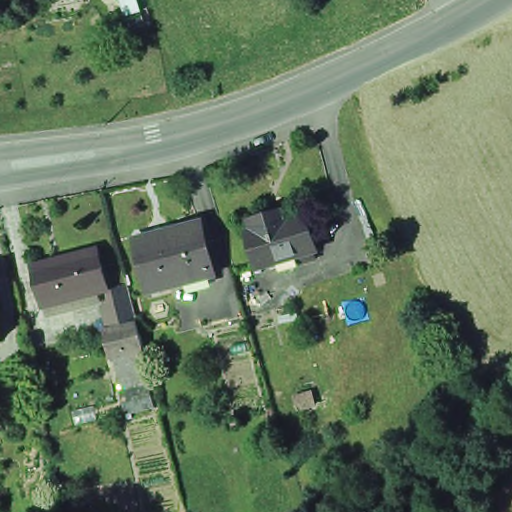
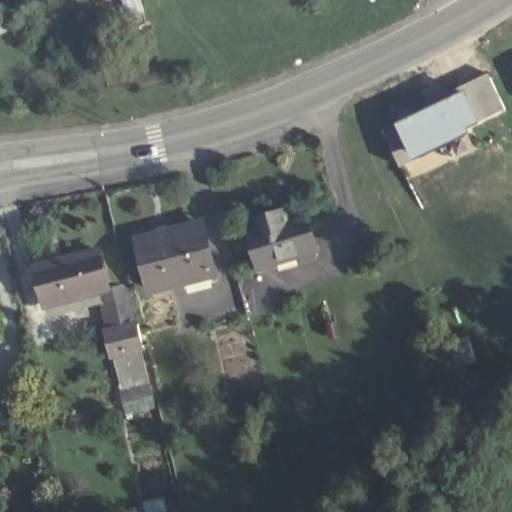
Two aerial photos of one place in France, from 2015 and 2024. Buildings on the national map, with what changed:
new [(506,110),(467,130),(469,135),(400,169),(383,131),(463,93),(460,88),(489,73),(506,110)]
unchanged [(293,260),(286,262),(284,255),(248,266),(238,231),(243,230),(240,221),(275,211),(278,220),(280,219),(294,215),(304,249),(303,250),(304,257),(293,260)]
unchanged [(146,289),(131,239),(163,230),(194,221),(198,232),(208,272),(146,289)]
unchanged [(30,262),(103,238),(114,285),(126,283),(156,411),(124,422),(112,365),(97,297),(48,311),(30,262)]
unchanged [(0,322),(1,336),(0,336),(0,322)]

